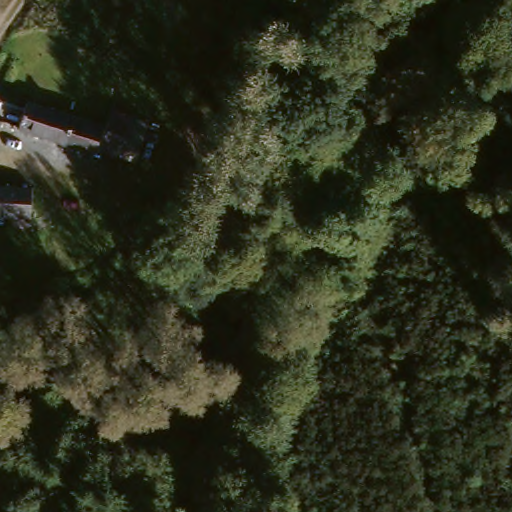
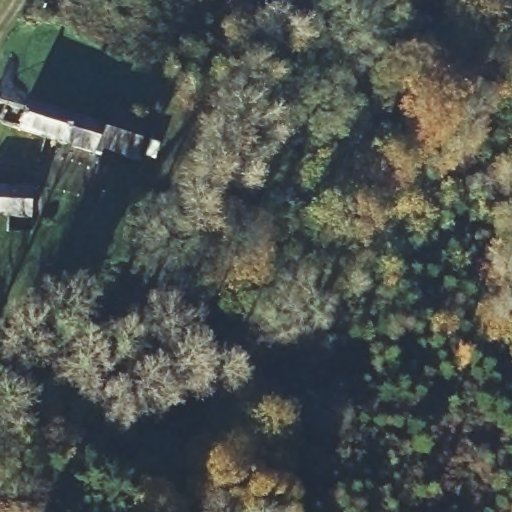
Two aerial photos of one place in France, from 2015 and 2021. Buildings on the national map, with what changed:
unchanged [(130,166),(92,153),(88,158),(13,133),(22,109),(103,133),(107,113),(144,125),(130,166)]
unchanged [(40,229),(15,226),(0,224),(0,193),(43,199),(41,226),(40,229)]

